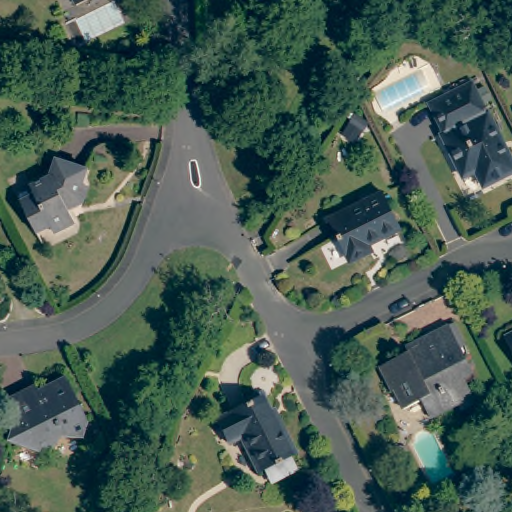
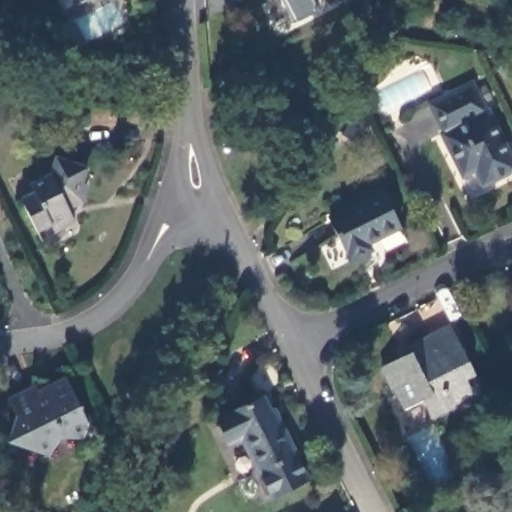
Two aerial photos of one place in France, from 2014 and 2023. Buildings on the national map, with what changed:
new [(320,12),(295,25),(282,0),(315,0),(314,0),(320,12)]
unchanged [(454,149),(440,120),(480,100),(495,129),(496,128),(512,159),(512,191),(492,201),(484,186),(472,193),(451,150),(454,149)]
unchanged [(84,170),(80,185),(83,186),(78,202),(66,209),(72,222),(52,232),(49,227),(37,234),(20,201),(33,194),(29,186),(49,175),(55,160),(84,170)]
unchanged [(381,189),(399,224),(367,240),(370,246),(349,256),(329,215),(381,189)]
unchanged [(407,354),(409,358),(416,355),(410,343),(452,322),(477,370),(468,375),(477,392),(435,413),(426,395),(408,405),(399,386),(396,387),(385,365),(407,354)]
unchanged [(512,336),(512,355),(504,340),(512,336)]
unchanged [(40,380),(43,385),(69,373),(92,420),(87,435),(65,434),(53,451),(11,437),(19,411),(11,395),(40,380)]
unchanged [(276,480),(268,466),(262,469),(245,435),(236,439),(224,414),(267,393),(283,424),(286,422),(299,450),(293,453),(300,468),(276,480)]

